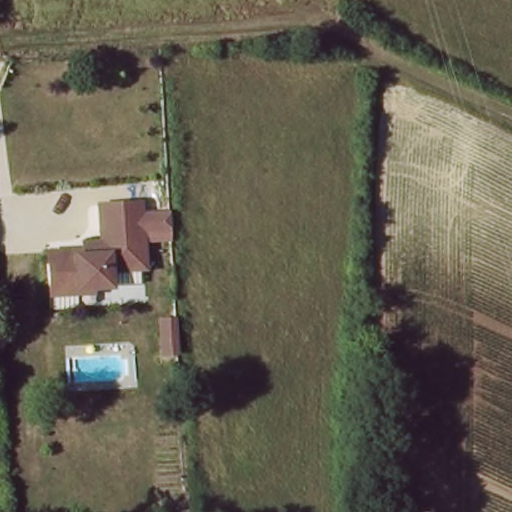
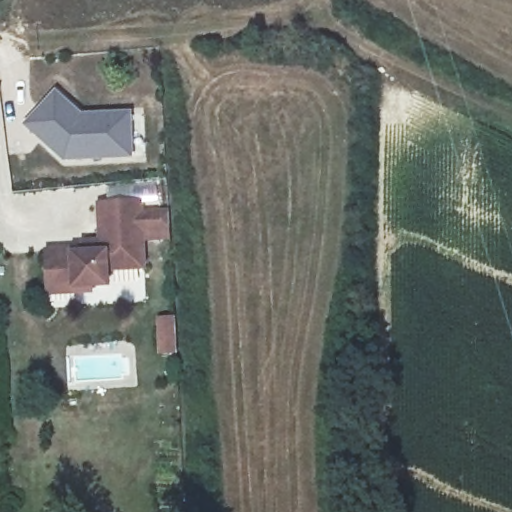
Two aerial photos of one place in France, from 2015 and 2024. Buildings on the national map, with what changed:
new [(55,86),(83,112),(133,108),(136,159),(63,164),(23,125),(55,86)]
unchanged [(55,297),(55,288),(53,255),(81,254),(90,254),(90,247),(108,246),(107,208),(148,207),(148,212),(170,211),(171,239),(149,240),(150,272),(114,274),(115,291),(81,292),(82,296),(55,297)]
unchanged [(185,361),(165,362),(161,320),(183,320),(185,361)]

